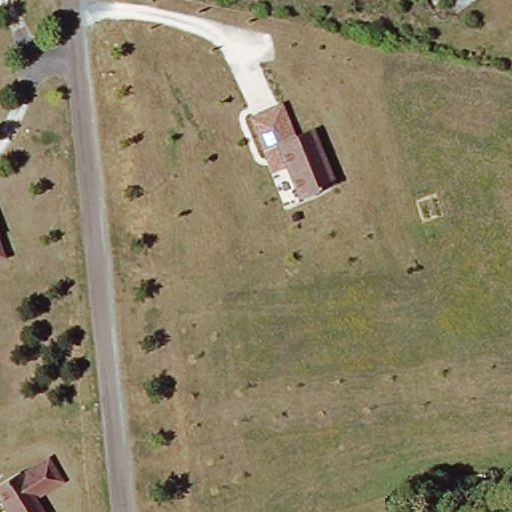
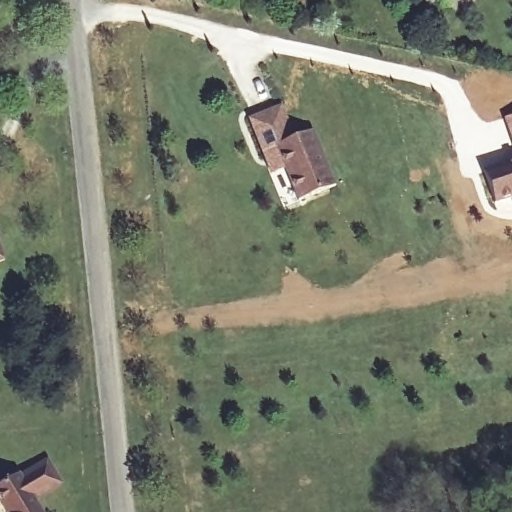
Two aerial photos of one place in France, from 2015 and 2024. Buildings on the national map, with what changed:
unchanged [(250,121),(282,108),(295,140),(313,132),(335,189),(298,203),(280,157),(269,162),(265,160),(250,121)]
new [(508,117),(512,116),(512,128),(508,117)]
new [(512,162),(512,197),(498,202),(487,170),(512,162)]
unchanged [(0,256),(0,245),(4,254),(0,256)]
unchanged [(0,482),(22,468),(23,472),(51,455),(67,478),(40,495),(50,512),(49,512),(13,512),(0,492),(0,482)]

